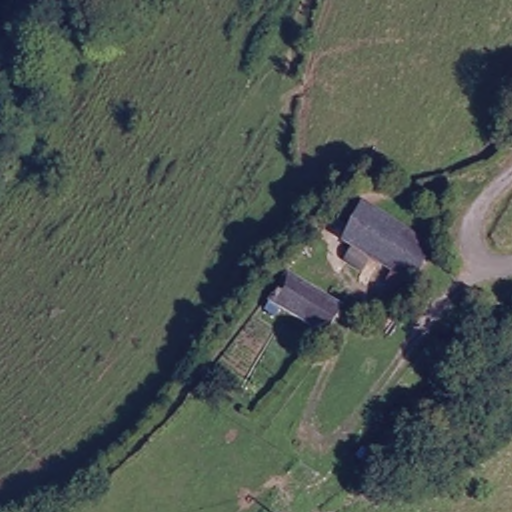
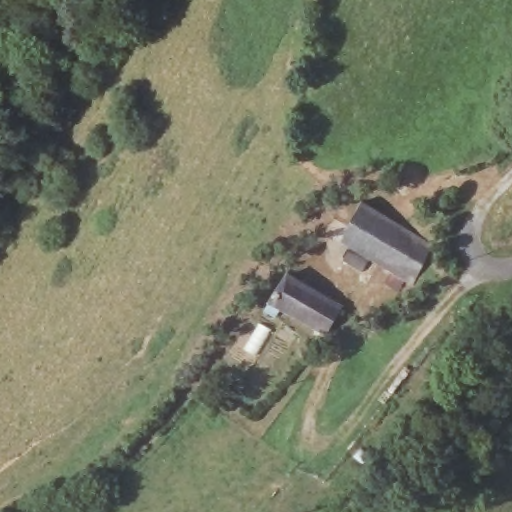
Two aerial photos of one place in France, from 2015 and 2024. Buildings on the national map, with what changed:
unchanged [(402,278),(399,286),(382,277),(387,267),(338,235),(360,198),(406,224),(435,241),(411,280),(402,278)]
unchanged [(324,330),(287,307),(277,315),(265,308),(290,269),(339,297),(329,318),(324,330)]

